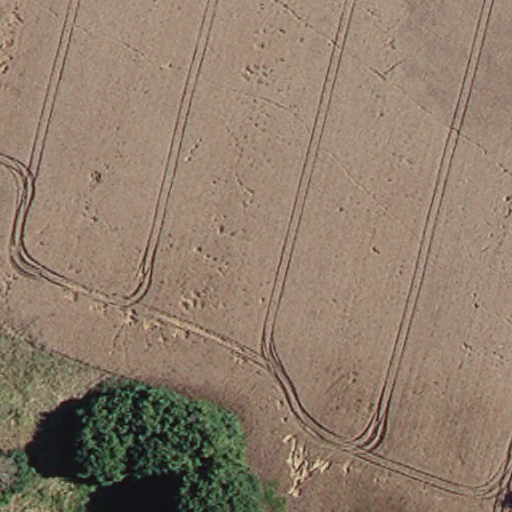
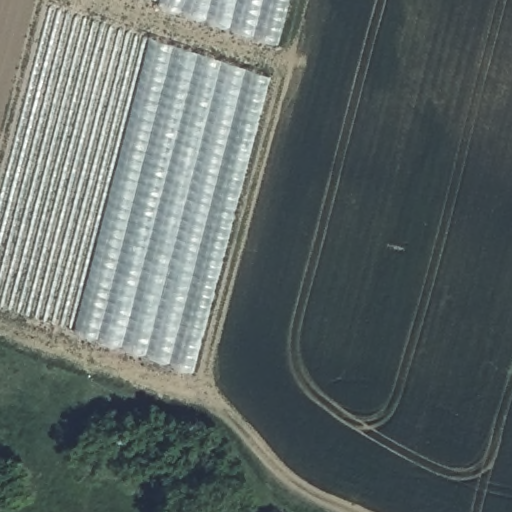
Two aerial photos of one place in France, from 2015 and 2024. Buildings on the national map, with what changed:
new [(162,5),(163,0),(292,0),(282,42),(162,5)]
new [(196,370),(79,330),(153,37),(274,76),(196,370)]

